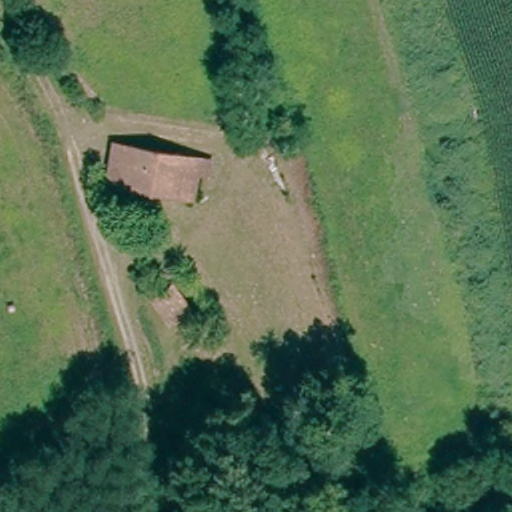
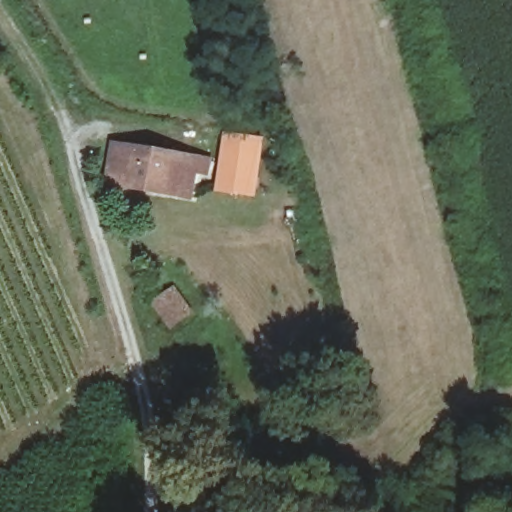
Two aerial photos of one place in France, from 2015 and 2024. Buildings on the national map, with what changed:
new [(224,132),(263,139),(255,197),(214,192),(224,132)]
unchanged [(111,140),(133,143),(206,157),(201,193),(191,191),(190,199),(102,183),(111,140)]
unchanged [(147,301),(170,281),(193,310),(170,331),(147,301)]

